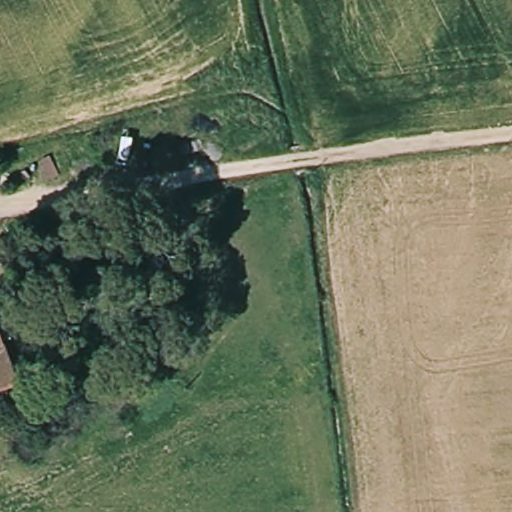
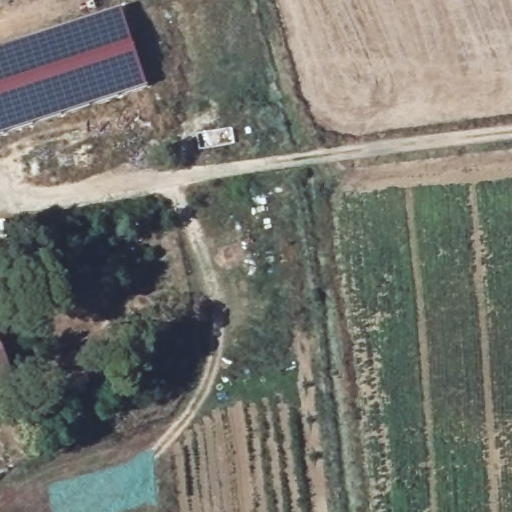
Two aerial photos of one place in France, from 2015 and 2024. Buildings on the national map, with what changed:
new [(0,135),(0,49),(122,9),(147,87),(0,135)]
unchanged [(26,386),(0,396),(0,321),(26,386)]

